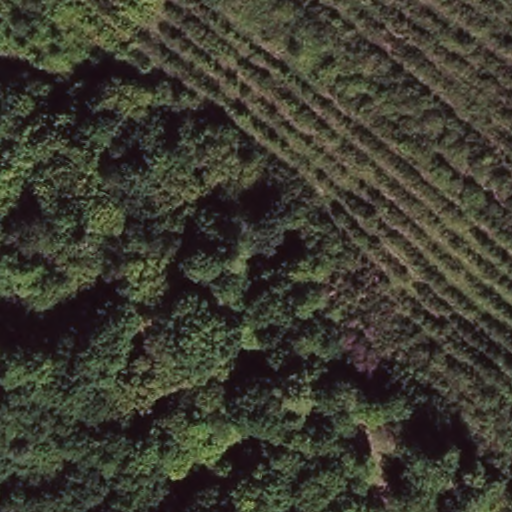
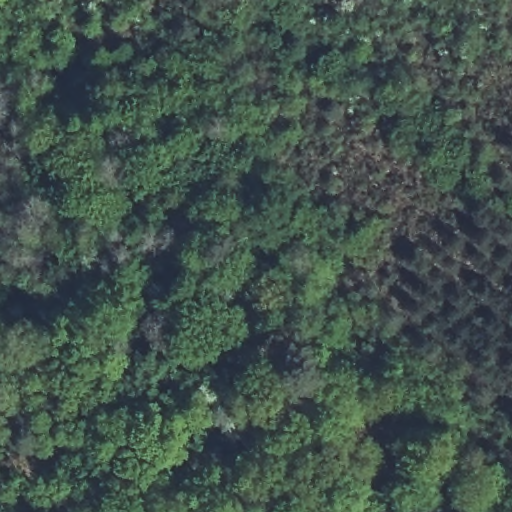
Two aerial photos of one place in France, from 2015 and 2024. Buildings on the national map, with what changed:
unchanged [(204,332),(229,359),(166,418),(140,390),(204,332)]
unchanged [(118,409),(140,390),(166,418),(145,437),(118,409)]

